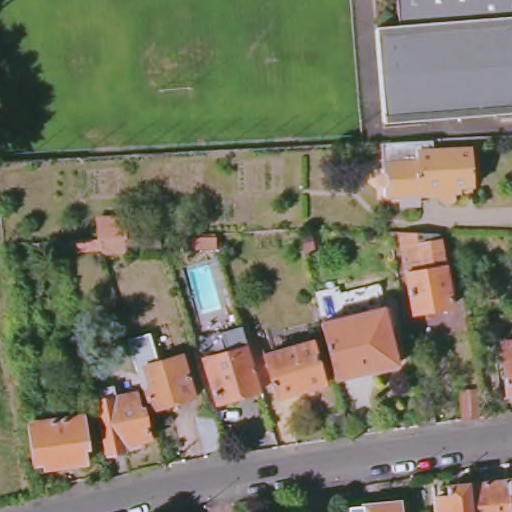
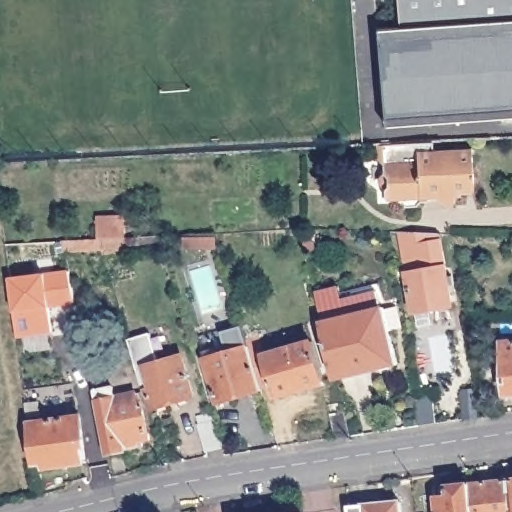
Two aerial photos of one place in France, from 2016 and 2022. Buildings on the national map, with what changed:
unchanged [(392,125),(384,29),(406,27),(404,0),(512,0),(512,116),(392,125)]
unchanged [(451,146),(449,154),(488,154),(489,190),(487,192),(487,197),(471,198),(471,204),(469,206),(469,208),(466,208),(463,209),(460,208),(458,207),(456,206),(454,204),(454,200),(383,201),(382,165),(377,164),(376,150),(451,146)]
unchanged [(95,235),(96,217),(122,218),(123,252),(63,254),(64,241),(95,235)]
unchanged [(432,310),(415,313),(399,232),(439,233),(452,307),(432,310)]
new [(49,308),(52,333),(16,338),(9,279),(45,275),(68,271),(75,304),(49,308)]
unchanged [(335,379),(323,324),(324,324),(387,311),(399,364),(337,379),(335,379)]
unchanged [(151,334),(158,363),(138,369),(128,341),(151,334)]
unchanged [(507,395),(503,342),(512,341),(512,395),(507,395)]
unchanged [(249,354),(247,347),(259,344),(266,362),(313,349),(324,389),(276,403),(273,389),(260,393),(249,354)]
unchanged [(260,393),(261,397),(219,409),(208,366),(249,354),(260,393)]
unchanged [(183,356),(194,396),(153,407),(150,395),(146,397),(138,369),(183,356)]
unchanged [(465,420),(463,391),(478,390),(479,418),(465,420)]
unchanged [(107,454),(96,402),(98,401),(137,393),(141,409),(145,408),(151,439),(144,441),(146,445),(108,454),(107,454)]
unchanged [(421,427),(415,397),(432,396),(436,424),(421,427)]
unchanged [(350,437),(335,440),(329,415),(344,411),(350,437)]
unchanged [(222,448),(206,454),(198,426),(199,426),(197,418),(212,414),(222,448)]
unchanged [(29,423),(81,417),(86,463),(47,466),(46,462),(35,464),(29,423)]
unchanged [(509,481),(512,480),(512,512),(509,481)]
unchanged [(468,485),(509,481),(512,512),(471,512),(468,485)]
unchanged [(471,512),(435,512),(433,499),(448,497),(448,487),(468,485),(471,512)]
unchanged [(353,505),(402,502),(403,512),(354,512),(353,505)]

